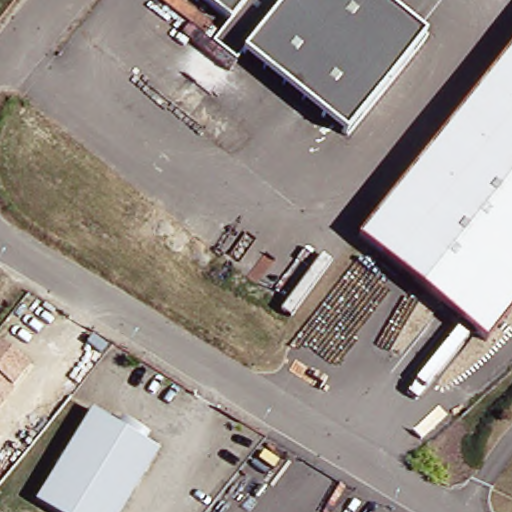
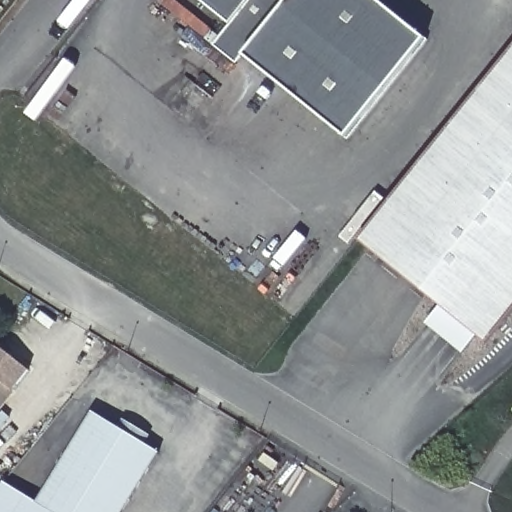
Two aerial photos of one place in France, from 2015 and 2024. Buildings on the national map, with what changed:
unchanged [(236,60),(214,42),(230,21),(204,0),(382,0),(426,36),(347,135),(243,52),(236,60)]
unchanged [(484,342),(404,279),(354,239),(512,41),(512,307),(484,342)]
unchanged [(0,348),(29,372),(0,410),(0,348)]
unchanged [(127,512),(47,512),(39,507),(93,414),(119,429),(124,421),(151,437),(146,445),(161,454),(127,512)]
new [(0,486),(1,484),(39,507),(47,512),(0,512),(0,486)]

